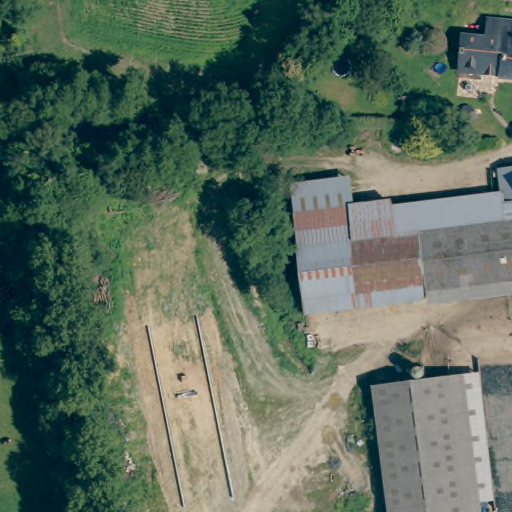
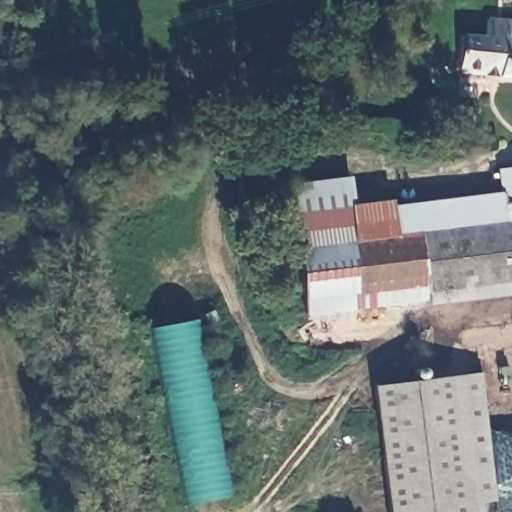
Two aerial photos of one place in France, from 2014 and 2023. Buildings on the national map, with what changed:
unchanged [(502,61),(493,60),(487,59),(487,68),(463,66),(466,33),(489,35),(490,27),(491,15),(511,18),(512,18),(512,75),(501,74),(502,61)]
unchanged [(351,174),(358,173),(359,198),(398,196),(399,203),(510,200),(511,210),(512,210),(512,231),(423,235),(302,240),(301,174),(343,173),(351,174)]
unchanged [(512,210),(511,210),(510,200),(507,179),(507,173),(512,173),(512,210)]
unchanged [(423,235),(512,231),(512,281),(426,283),(423,235)]
unchanged [(426,283),(303,287),(302,240),(423,235),(426,283)]
new [(194,320),(227,497),(190,505),(155,328),(194,320)]
unchanged [(495,500),(480,502),(481,512),(388,512),(372,386),(480,373),(495,500)]

